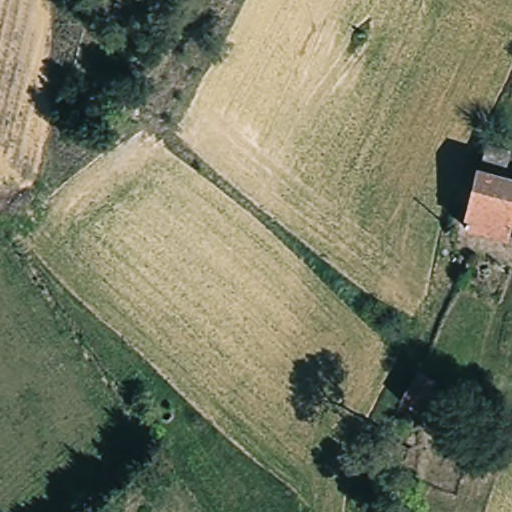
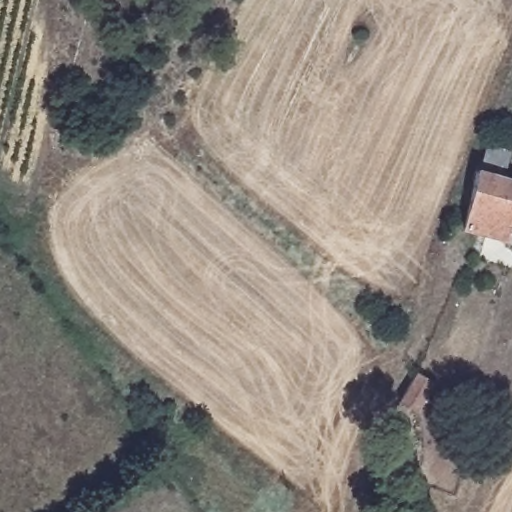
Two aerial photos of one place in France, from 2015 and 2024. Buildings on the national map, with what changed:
unchanged [(507,240),(460,226),(478,168),(486,142),(509,148),(502,174),(512,177),(512,222),(507,240)]
unchanged [(417,372),(433,383),(414,413),(398,403),(417,372)]

